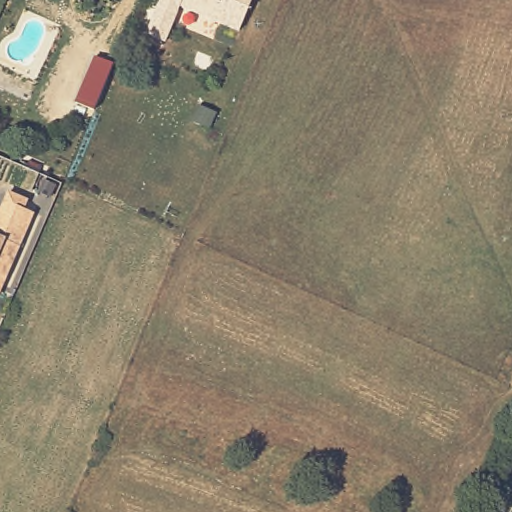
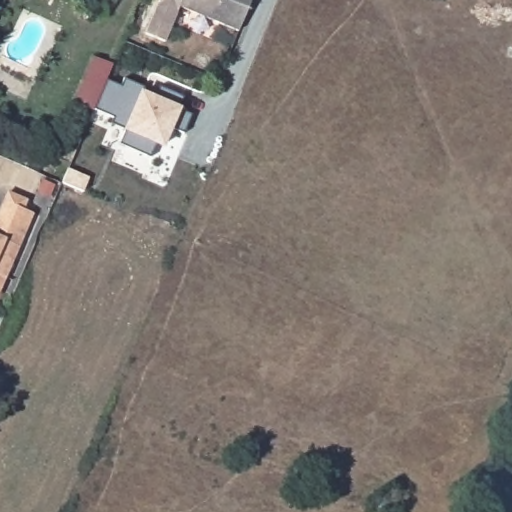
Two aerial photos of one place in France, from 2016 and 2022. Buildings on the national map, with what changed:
unchanged [(178,7),(181,0),(250,0),(237,32),(178,7)]
new [(95,57),(113,65),(107,81),(94,110),(94,111),(93,112),(75,103),(95,57)]
new [(94,110),(107,81),(121,87),(125,77),(145,88),(142,94),(155,99),(160,87),(184,98),(179,110),(192,116),(184,135),(170,129),(162,147),(157,145),(150,159),(119,146),(125,131),(111,125),(113,119),(94,111),(94,110)]
unchanged [(12,189),(31,197),(27,205),(37,210),(9,275),(1,293),(0,293),(0,217),(9,197),(12,189)]

